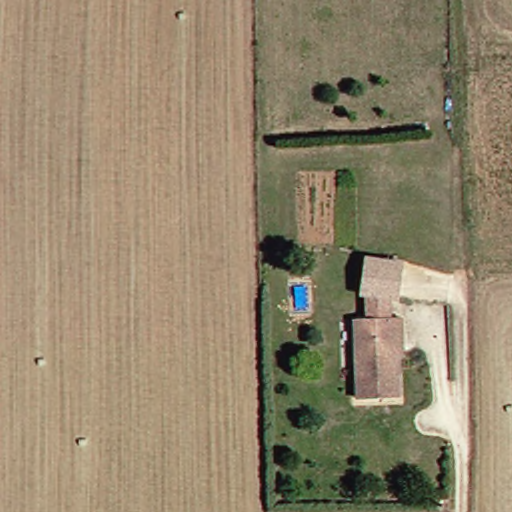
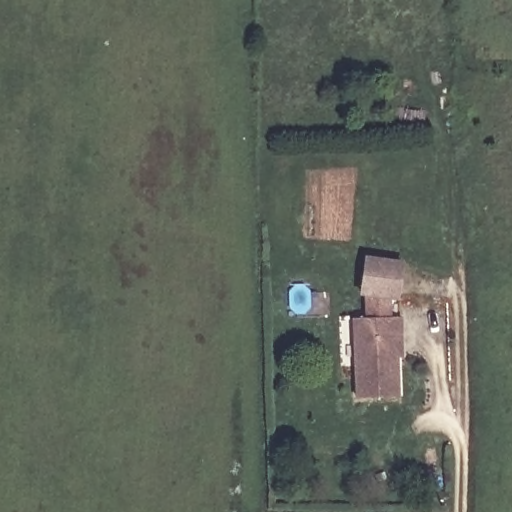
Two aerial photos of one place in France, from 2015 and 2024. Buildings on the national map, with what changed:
unchanged [(367,321),(380,321),(382,296),(377,295),(385,262),(420,269),(412,303),(404,302),(402,322),(413,323),(413,340),(407,340),(403,402),(360,400),(367,321)]

